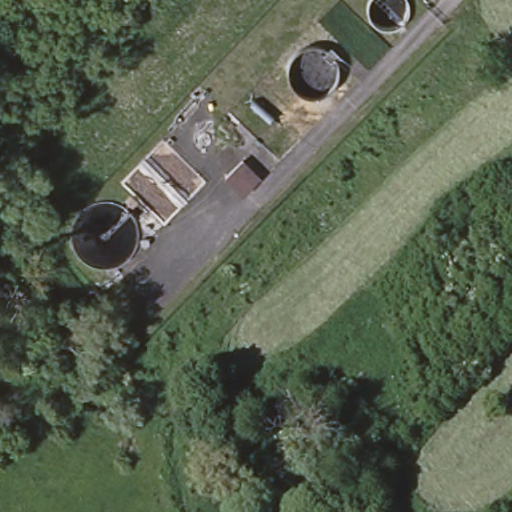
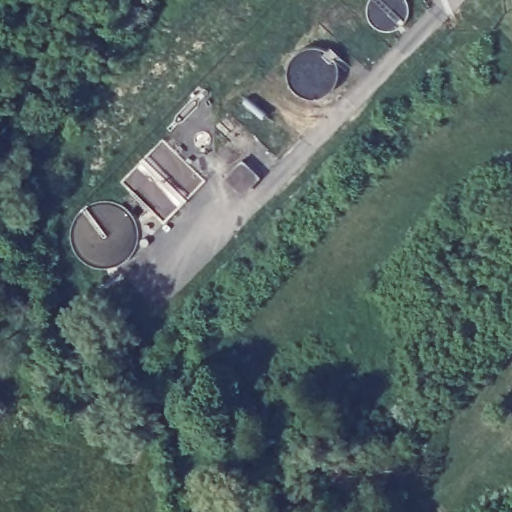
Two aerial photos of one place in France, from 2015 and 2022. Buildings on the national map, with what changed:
unchanged [(256,176),(239,194),(222,177),(239,160),(256,176)]

